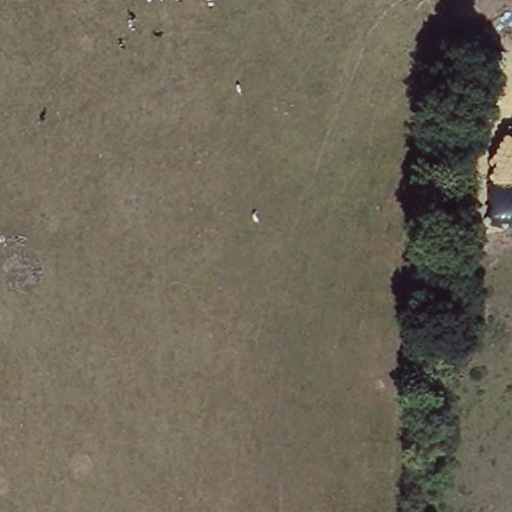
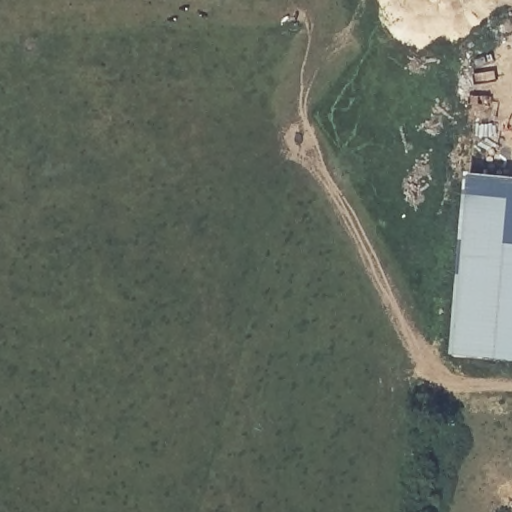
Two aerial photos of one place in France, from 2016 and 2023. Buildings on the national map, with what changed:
new [(512,178),(512,365),(455,358),(471,173),(512,178)]

